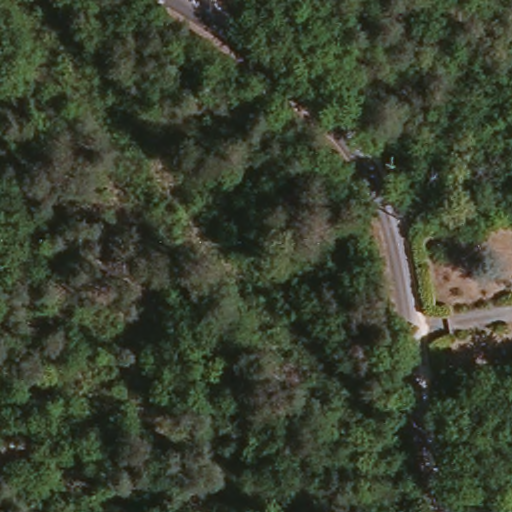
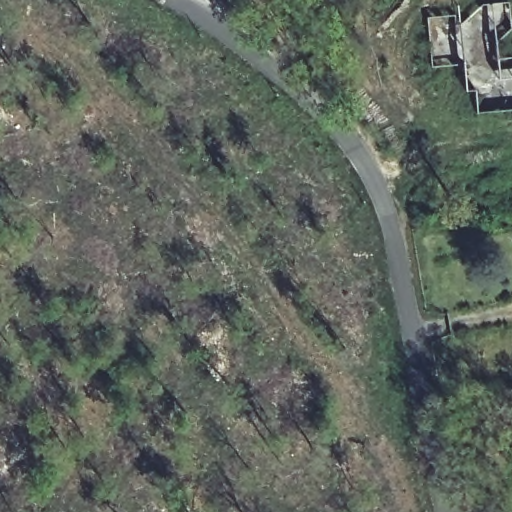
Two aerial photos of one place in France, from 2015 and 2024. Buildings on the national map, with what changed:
new [(512,27),(497,43),(498,59),(512,57),(512,110),(478,113),(475,88),(464,90),(462,60),(432,64),(427,16),(460,12),(460,22),(484,3),(510,1),(512,21),(512,27)]

